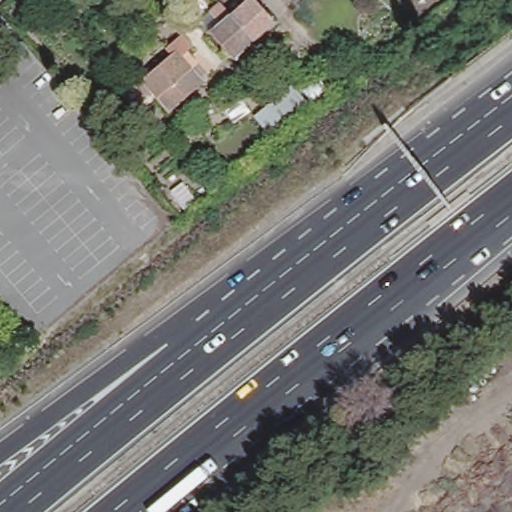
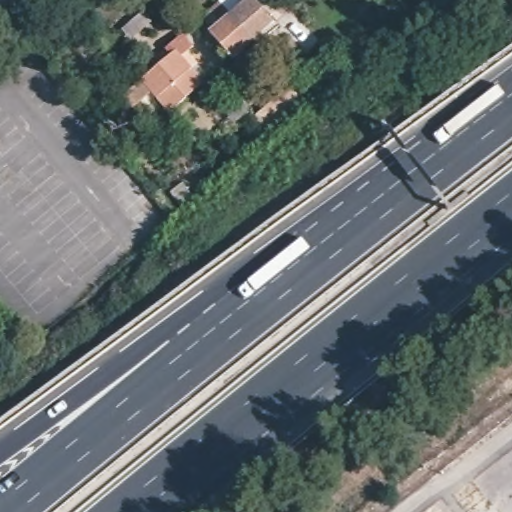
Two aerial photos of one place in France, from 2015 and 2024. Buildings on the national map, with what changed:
unchanged [(214,35),(226,24),(220,18),(230,10),(236,16),(255,0),(257,0),(279,24),(258,41),(237,59),(214,35)]
unchanged [(194,49),(181,60),(203,85),(172,114),(153,93),(135,109),(123,95),(185,38),(194,49)]
unchanged [(270,133),(253,115),(284,89),(273,75),(281,68),(310,100),(270,133)]

